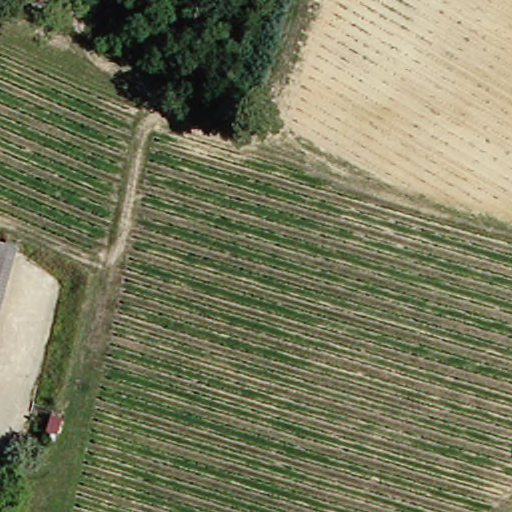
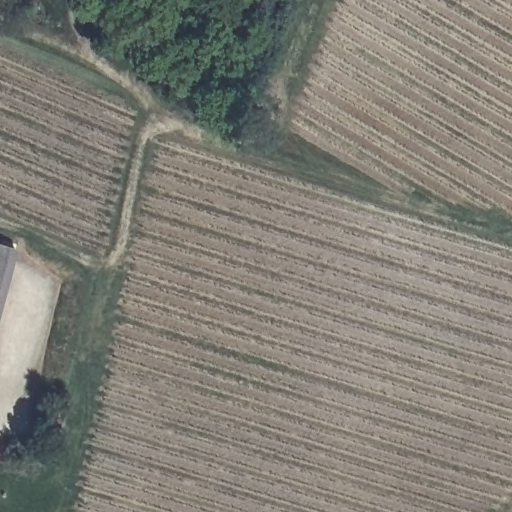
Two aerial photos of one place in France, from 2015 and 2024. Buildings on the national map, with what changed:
unchanged [(0,323),(0,247),(19,253),(0,323)]

